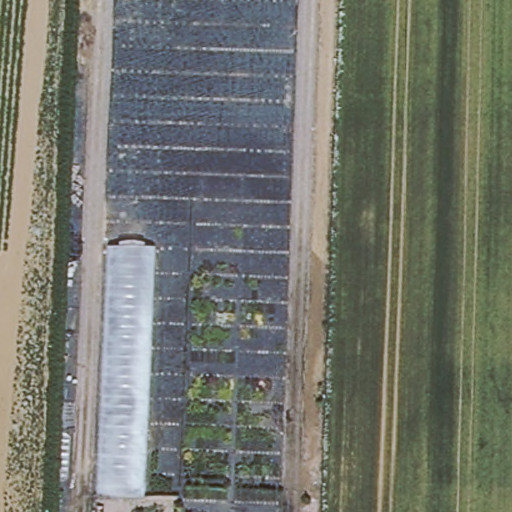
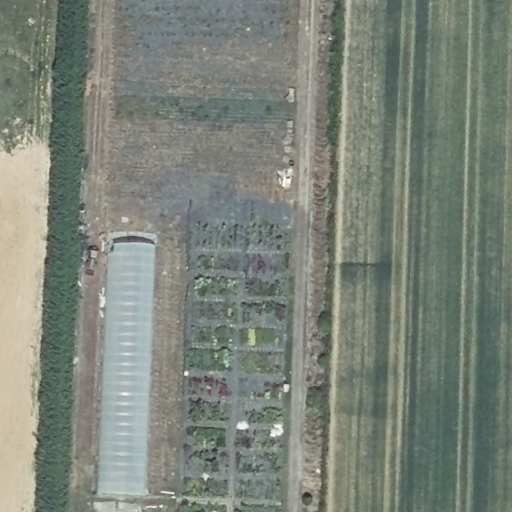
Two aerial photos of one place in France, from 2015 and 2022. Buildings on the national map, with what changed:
unchanged [(146,497),(97,494),(107,246),(155,249),(146,497)]

